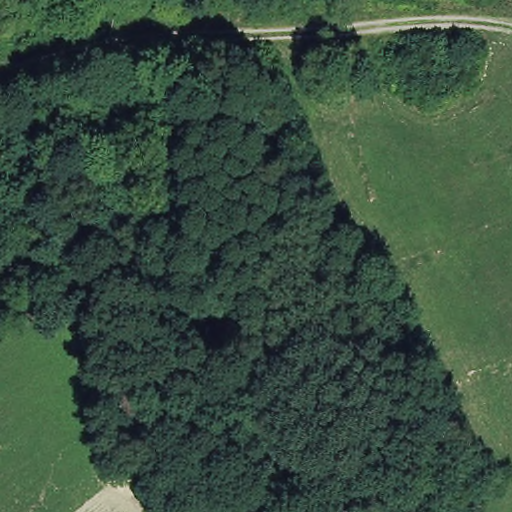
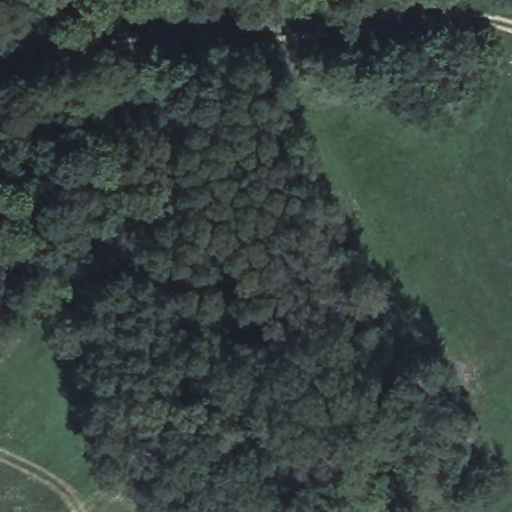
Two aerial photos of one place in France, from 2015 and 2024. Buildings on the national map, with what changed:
unchanged [(161,106),(176,97),(183,109),(169,117),(161,106)]

